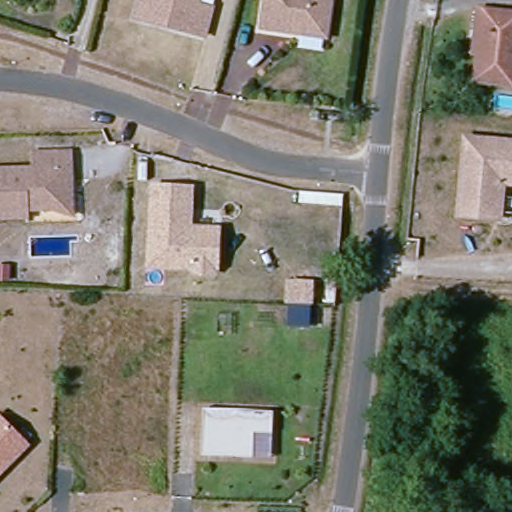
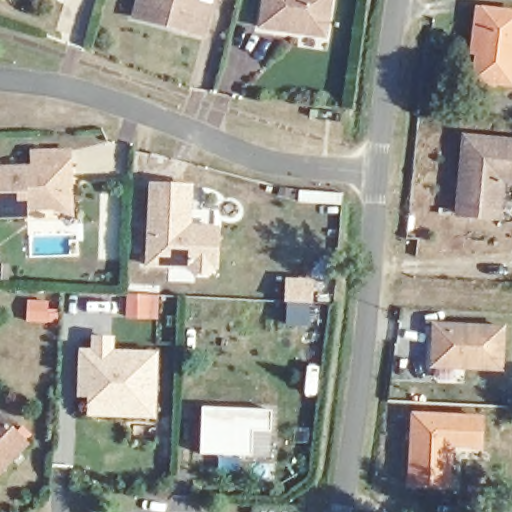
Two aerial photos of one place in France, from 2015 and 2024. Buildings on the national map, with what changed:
unchanged [(139,0),(197,0),(196,4),(210,7),(203,36),(187,32),(134,18),(139,0)]
unchanged [(320,38),(255,26),(260,0),(327,0),(320,38)]
unchanged [(512,51),(507,88),(470,83),(474,57),(465,56),(468,34),(471,13),(512,18),(512,51)]
unchanged [(512,178),(499,177),(495,214),(456,211),(463,135),(512,139),(512,178)]
unchanged [(44,211),(20,212),(20,220),(0,220),(0,172),(29,171),(28,156),(65,155),(65,171),(66,216),(44,211)]
unchanged [(191,218),(197,225),(217,226),(215,264),(209,270),(195,270),(190,264),(148,262),(152,183),(193,185),(191,218)]
new [(431,370),(432,325),(506,327),(505,372),(431,370)]
new [(91,349),(91,337),(114,337),(114,350),(159,352),(156,420),(86,417),(86,399),(76,398),(79,349),(91,349)]
unchanged [(271,410),(271,433),(254,432),(251,458),(200,455),(202,406),(271,410)]
new [(485,418),(482,450),(454,449),(450,491),(408,488),(411,413),(485,418)]
unchanged [(29,445),(0,472),(0,416),(29,445)]

